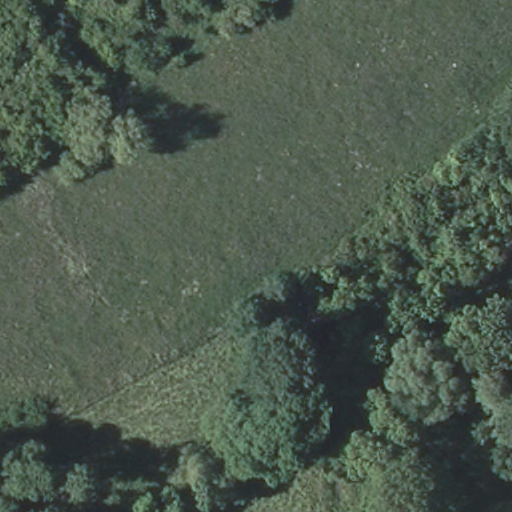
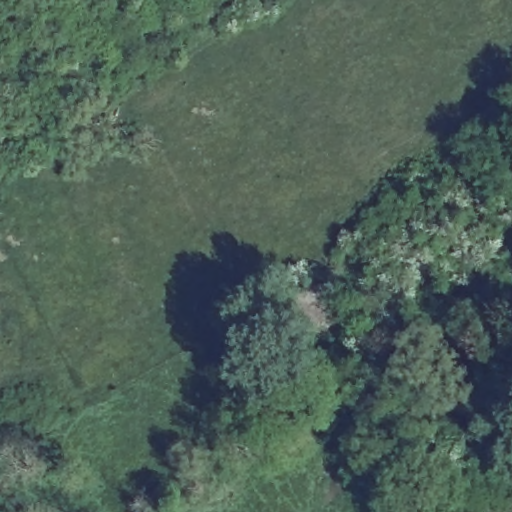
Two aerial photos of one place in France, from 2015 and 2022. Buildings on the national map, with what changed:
unchanged [(303,300),(326,288),(342,322),(319,335),(303,300)]

